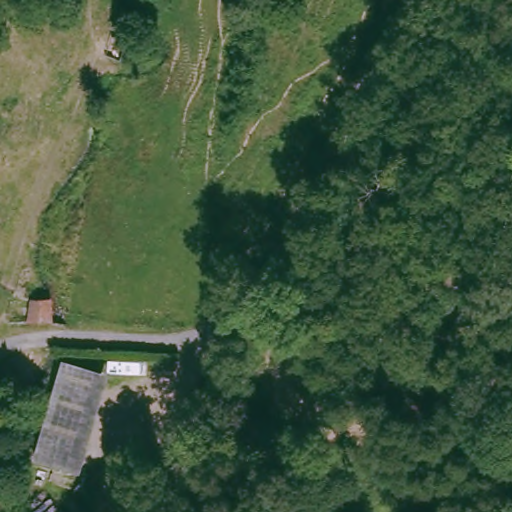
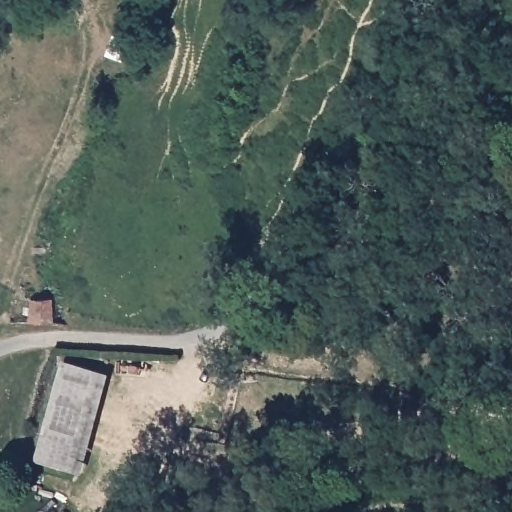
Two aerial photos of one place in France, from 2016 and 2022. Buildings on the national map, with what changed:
unchanged [(52,294),(53,319),(27,319),(30,295),(52,294)]
unchanged [(109,370),(80,472),(32,458),(33,455),(59,355),(109,370)]

